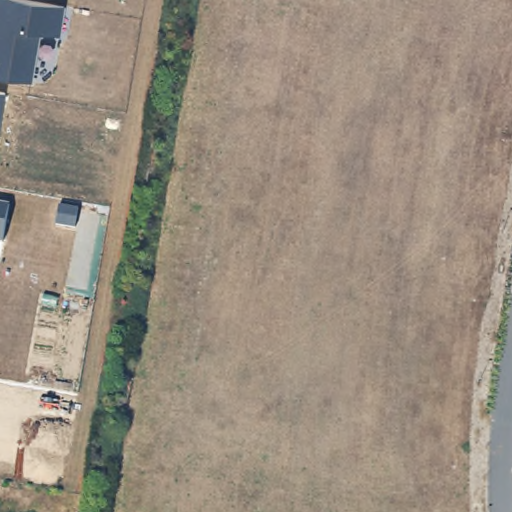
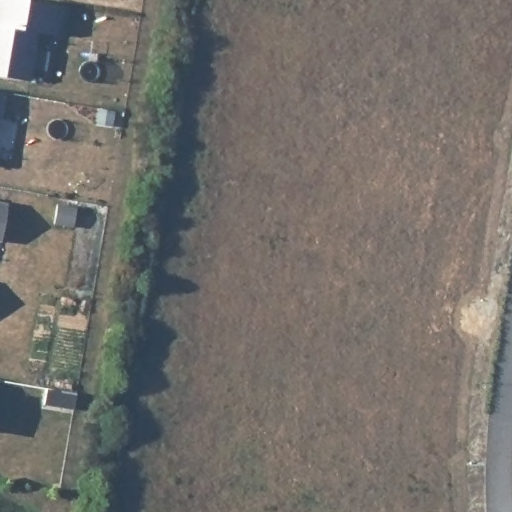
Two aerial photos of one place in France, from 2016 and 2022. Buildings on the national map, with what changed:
unchanged [(59,40),(38,35),(29,84),(0,78),(0,0),(28,0),(64,8),(59,40)]
unchanged [(0,120),(0,92),(4,93),(0,120)]
unchanged [(3,242),(0,242),(0,204),(7,205),(3,242)]

